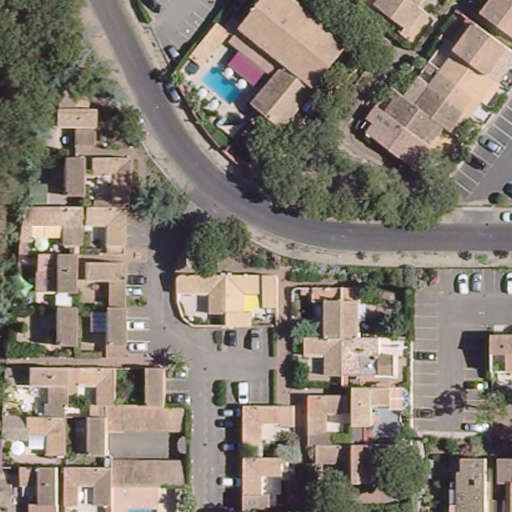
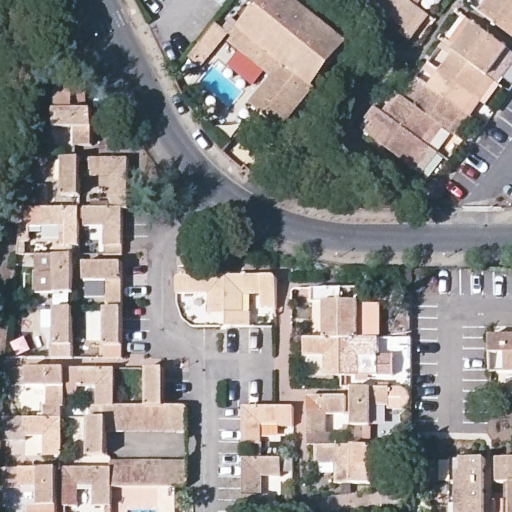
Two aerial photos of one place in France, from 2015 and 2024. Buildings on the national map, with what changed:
unchanged [(283,125),(254,101),(275,74),(232,38),(261,0),(298,0),(350,41),(283,125)]
unchanged [(373,0),(428,0),(420,11),(404,32),(369,6),(373,0)]
unchanged [(476,18),(489,0),(512,0),(512,42),(511,43),(476,18)]
unchanged [(419,13),(420,11),(428,17),(409,42),(402,36),(404,32),(419,13)]
unchanged [(203,64),(191,55),(190,54),(217,20),(218,21),(229,29),(203,64)]
unchanged [(414,163),(409,159),(407,158),(372,133),(382,119),(396,100),(397,99),(409,108),(423,89),(435,74),(450,54),(470,27),(504,51),(484,79),(469,99),(458,115),(445,133),(444,134),(439,130),(436,134),(425,149),(414,163)]
unchanged [(76,145),(76,125),(56,124),(56,108),(59,108),(59,90),(62,90),(62,75),(75,75),(75,90),(87,90),(87,108),(94,108),(93,145),(76,145)]
unchanged [(469,99),(483,81),(484,79),(492,84),(478,105),(469,99)]
unchanged [(444,134),(458,115),(466,121),(453,138),(452,139),(444,134)]
unchanged [(80,193),(63,193),(64,155),(80,155),(80,193)]
unchanged [(134,194),(117,194),(117,174),(96,173),(96,155),(134,156),(134,194)]
unchanged [(80,242),(63,242),(63,222),(42,222),(43,204),(80,204),(80,242)]
unchanged [(125,243),(106,243),(106,223),(87,223),(87,205),(125,205),(125,243)]
unchanged [(205,261),(194,262),(194,268),(183,268),(183,259),(192,258),(192,248),(205,248),(205,261)]
unchanged [(75,289),(57,289),(57,269),(37,268),(37,250),(75,251),(75,289)]
unchanged [(125,273),(87,272),(87,253),(125,253),(125,273)]
unchanged [(250,295),(250,315),(216,315),(216,295),(196,295),(188,295),(188,278),(196,278),(270,278),(270,295),(250,295)]
unchanged [(365,371),(330,372),(330,352),(312,352),(312,335),(330,335),(330,298),(365,298),(365,335),(385,335),(385,352),(385,371),(365,371)]
unchanged [(124,346),(123,350),(106,350),(106,300),(124,300),(124,346)]
unchanged [(74,343),(57,343),(56,304),(74,304),(74,343)]
unchanged [(493,334),(494,332),(512,332),(512,369),(493,369),(493,334)]
unchanged [(70,402),(53,401),(53,382),(33,382),(33,364),(71,365),(70,402)]
unchanged [(194,429),(113,428),(112,452),(95,452),(95,414),(111,414),(111,402),(103,402),(103,383),(83,383),(83,365),(121,365),(121,403),(152,403),(152,365),(171,365),(171,404),(195,404),(194,429)]
unchanged [(396,404),(377,404),(376,423),(358,423),(360,384),(396,385),(396,404)]
unchanged [(352,411),(332,411),(332,430),(314,431),(314,394),(352,393),(352,411)]
unchanged [(288,422),(267,422),(268,441),(249,441),(248,404),(282,404),(288,404),(288,422)]
unchanged [(68,452),(51,452),(51,432),(31,431),(31,414),(69,414),(68,452)]
unchanged [(376,480),(342,479),(342,459),(323,459),(323,442),(377,442),(376,480)]
unchanged [(282,467),(263,468),(263,487),(243,487),(244,450),(282,450),(282,467)]
unchanged [(193,482),(184,482),(118,482),(118,501),(100,501),(100,482),(80,482),(80,464),(117,464),(118,456),(193,456),(193,482)]
unchanged [(452,490),(452,469),(458,469),(457,456),(481,456),(481,512),(457,512),(458,490),(452,490)]
unchanged [(494,480),(494,456),(512,457),(512,512),(508,512),(508,480),(494,480)]
unchanged [(58,507),(42,507),(41,488),(21,488),(21,470),(58,470),(58,507)]

